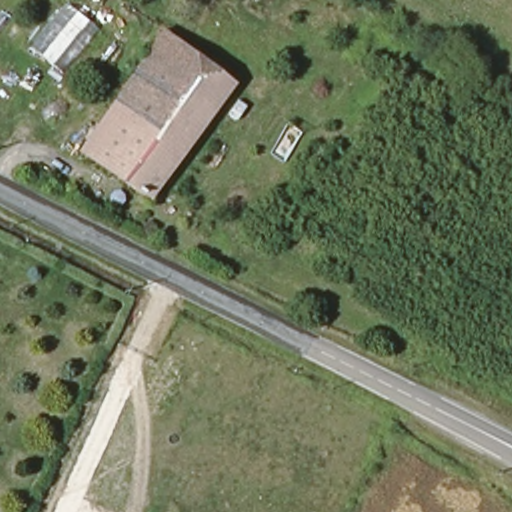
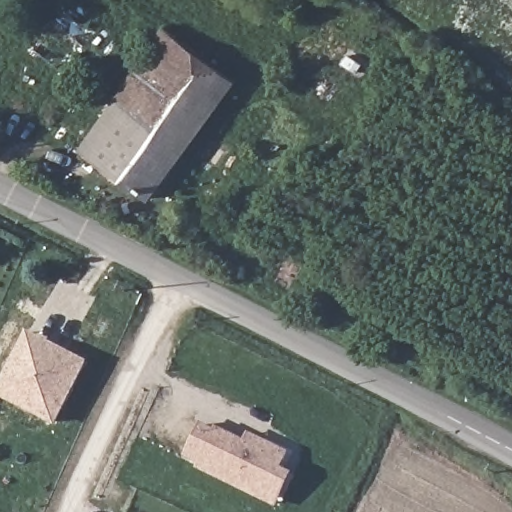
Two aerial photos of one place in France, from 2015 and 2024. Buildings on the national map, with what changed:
unchanged [(167,32),(238,85),(151,202),(84,152),(167,32)]
new [(0,397),(0,383),(27,330),(88,361),(56,426),(0,397)]
new [(200,426),(214,433),(216,430),(262,453),(266,445),(286,455),(264,501),(197,468),(200,463),(185,457),(200,426)]

